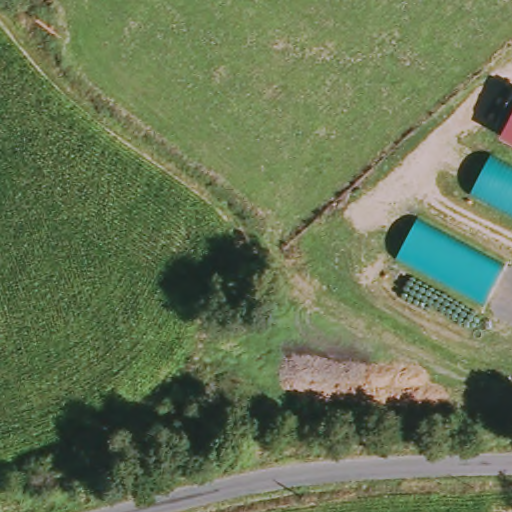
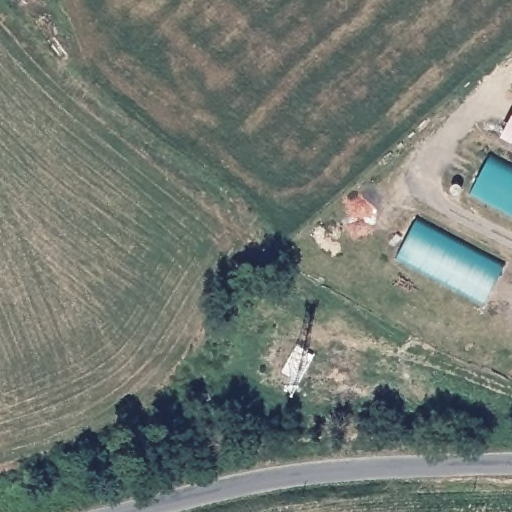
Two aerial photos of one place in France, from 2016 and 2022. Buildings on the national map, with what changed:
unchanged [(512,115),(512,139),(502,134),(512,115)]
unchanged [(512,214),(469,192),(489,153),(512,165),(512,214)]
unchanged [(503,266),(484,301),(394,254),(415,219),(503,266)]

